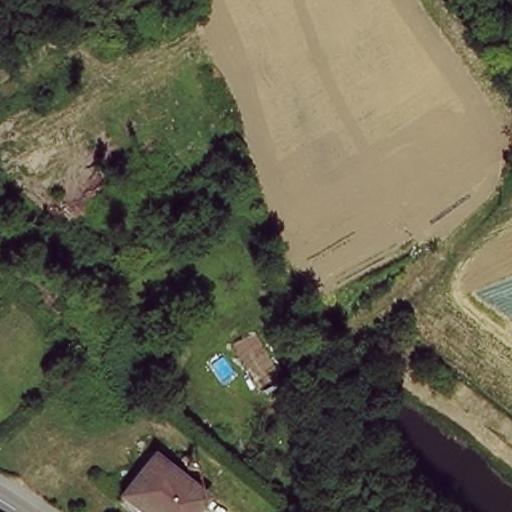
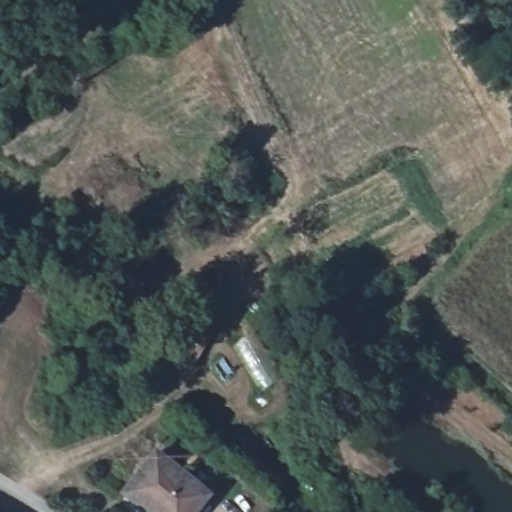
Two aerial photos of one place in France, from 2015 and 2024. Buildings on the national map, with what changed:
unchanged [(128,490),(155,454),(207,495),(194,512),(145,512),(124,495),(128,490)]

